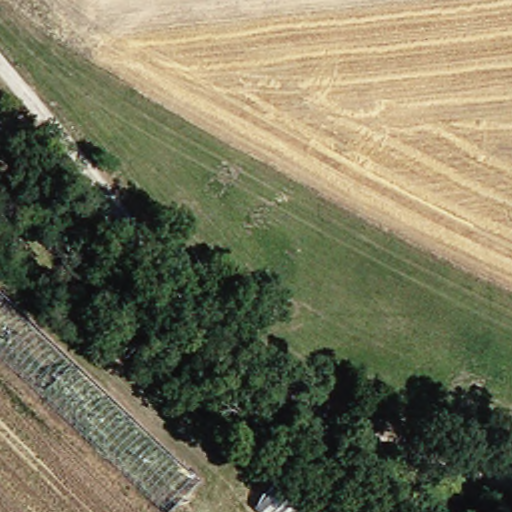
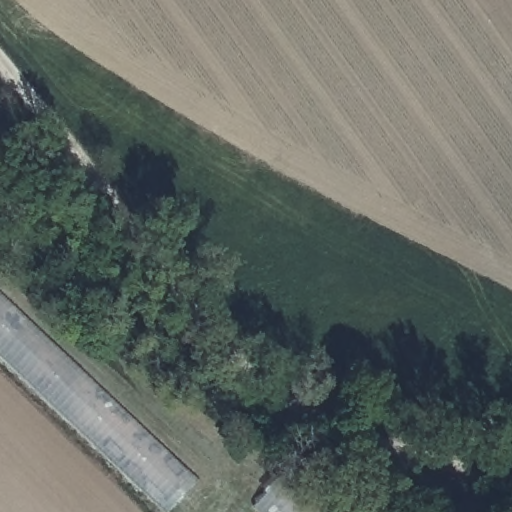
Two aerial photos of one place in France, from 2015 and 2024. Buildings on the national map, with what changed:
unchanged [(0,349),(0,292),(204,483),(173,512),(171,512),(0,349)]
unchanged [(265,510),(292,478),(329,512),(267,512),(265,510)]

